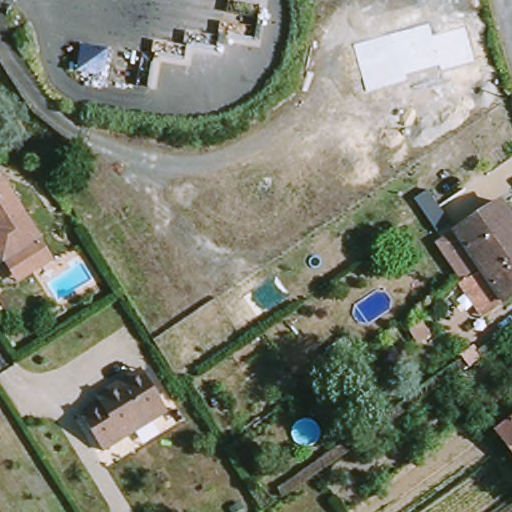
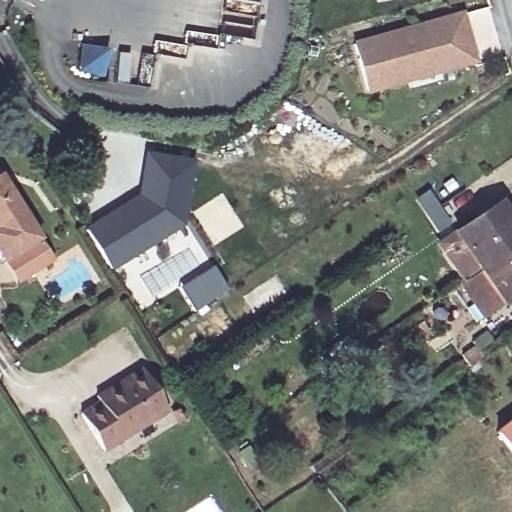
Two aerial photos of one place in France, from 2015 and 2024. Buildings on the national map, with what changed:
new [(367,93),(352,42),(462,11),(476,61),(367,93)]
unchanged [(89,46),(97,39),(115,42),(112,67),(87,64),(89,46)]
new [(112,269),(88,231),(143,196),(146,177),(150,155),(195,162),(184,224),(160,239),(112,269)]
unchanged [(7,266),(5,267),(0,260),(0,180),(1,179),(42,243),(40,244),(17,259),(7,266)]
unchanged [(499,208),(512,227),(512,248),(478,272),(455,238),(499,208)]
unchanged [(17,259),(40,244),(54,266),(21,287),(7,266),(17,259)]
unchanged [(512,248),(512,301),(502,308),(478,272),(512,248)]
new [(215,267),(230,290),(195,312),(181,289),(215,267)]
unchanged [(107,454),(84,417),(102,405),(100,399),(116,389),(145,372),(148,377),(171,414),(125,442),(115,449),(107,454)]
unchanged [(512,456),(497,435),(512,424),(512,456)]

